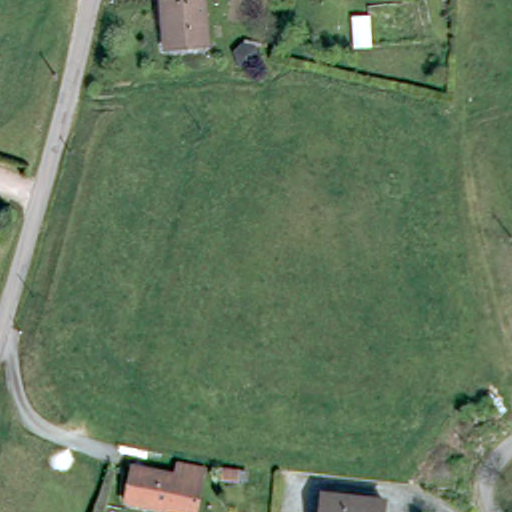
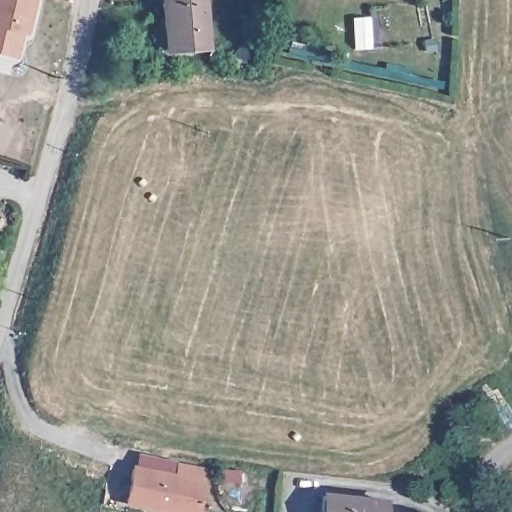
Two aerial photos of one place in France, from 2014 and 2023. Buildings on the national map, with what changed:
new [(23,34),(18,57),(0,53),(0,0),(36,0),(28,35),(23,34)]
unchanged [(164,0),(204,0),(208,49),(169,52),(164,0)]
unchanged [(203,471),(196,512),(184,512),(121,501),(128,467),(173,476),(175,465),(203,471)]
unchanged [(323,497),(389,512),(320,512),(323,497)]

